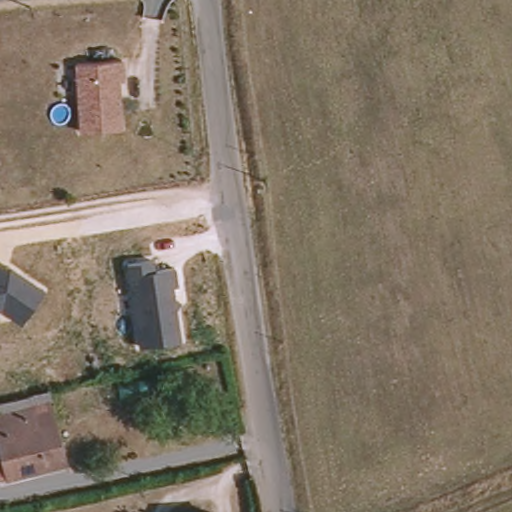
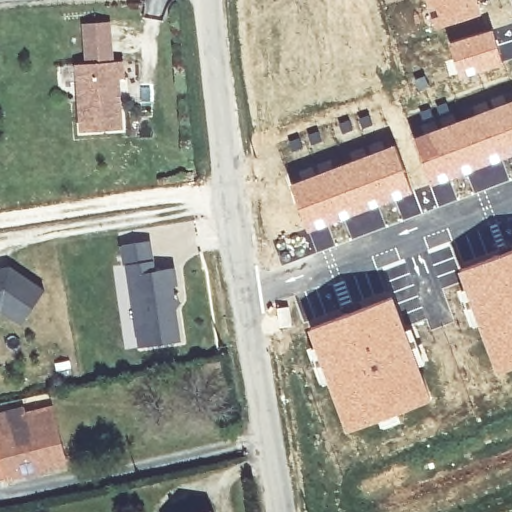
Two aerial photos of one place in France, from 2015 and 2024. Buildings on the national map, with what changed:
new [(435,28),(426,0),(479,0),(482,13),(435,28)]
new [(493,28),(505,62),(457,77),(447,42),(493,28)]
unchanged [(127,129),(86,131),(82,64),(127,61),(129,78),(124,79),(127,129)]
new [(512,99),(512,157),(432,185),(414,136),(512,99)]
new [(394,144),(412,192),(327,226),(334,246),(316,252),(290,183),(394,144)]
new [(512,249),(512,367),(496,373),(478,325),(470,328),(462,308),(470,305),(457,269),(512,249)]
unchanged [(152,259),(154,269),(178,264),(182,286),(173,287),(180,338),(137,346),(126,264),(152,259)]
unchanged [(47,289),(22,324),(1,309),(0,309),(0,267),(9,266),(47,289)]
new [(314,345),(307,328),(393,295),(422,363),(420,364),(433,398),(389,416),(346,431),(327,383),(319,386),(305,348),(314,345)]
unchanged [(66,469),(0,484),(0,409),(49,399),(66,469)]

